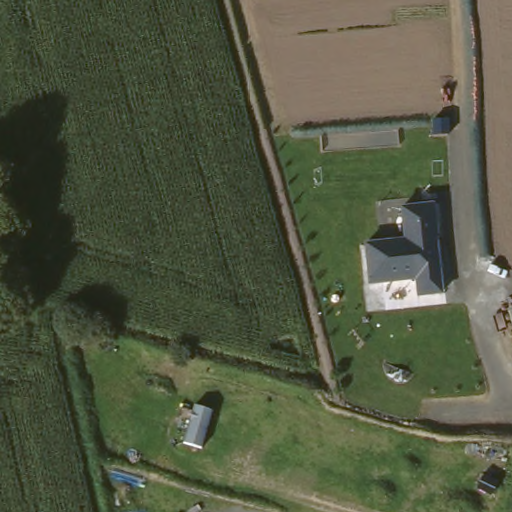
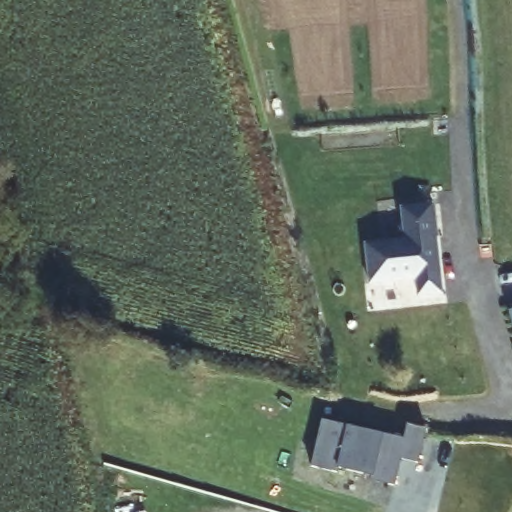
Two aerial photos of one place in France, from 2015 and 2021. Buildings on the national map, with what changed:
unchanged [(416,294),(416,280),(371,287),(366,241),(402,238),(400,205),(435,201),(443,290),(416,294)]
unchanged [(512,309),(511,305),(512,305),(512,309)]
new [(323,417),(404,438),(408,422),(426,428),(418,462),(400,458),(393,484),(370,478),(371,474),(338,465),(336,469),(311,463),(323,417)]

